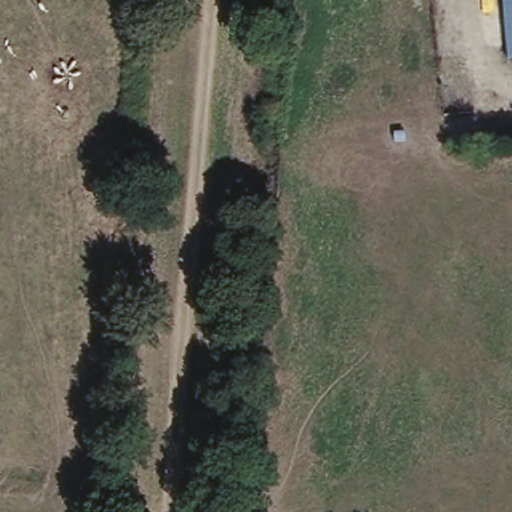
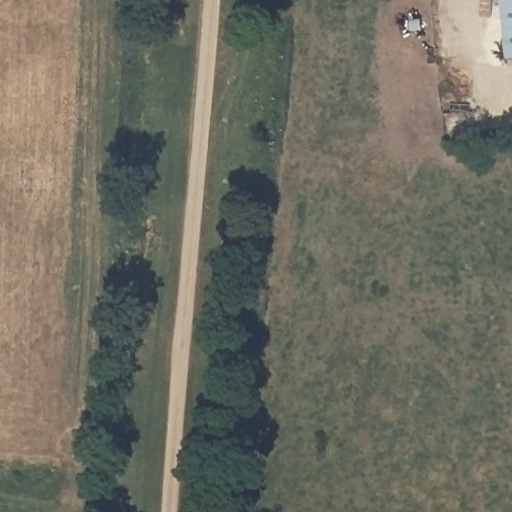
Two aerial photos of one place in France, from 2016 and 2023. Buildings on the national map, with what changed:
unchanged [(500,0),(512,0),(512,60),(506,60),(500,0)]

